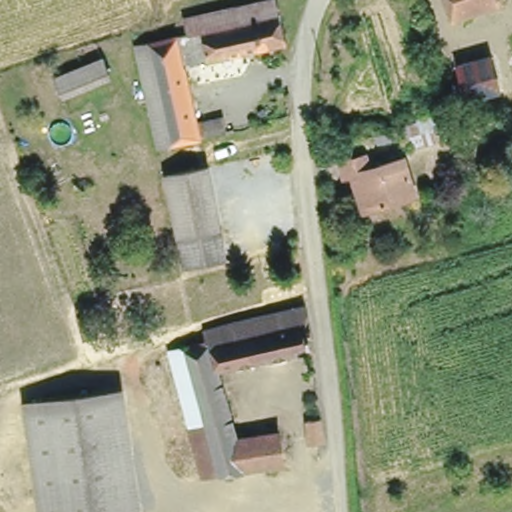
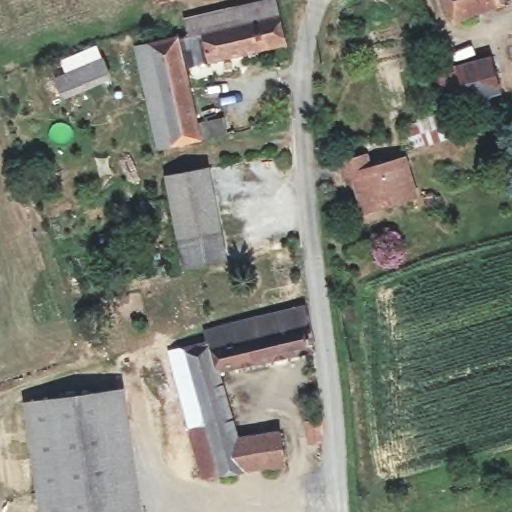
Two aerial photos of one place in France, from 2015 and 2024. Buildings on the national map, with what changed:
unchanged [(182,65),(192,117),(225,111),(229,127),(154,146),(134,42),(182,31),(180,17),(259,0),(274,0),(281,44),(182,65)]
unchanged [(500,2),(448,20),(441,0),(499,0),(500,2)]
unchanged [(468,95),(458,60),(490,52),(500,85),(468,95)]
unchanged [(102,53),(109,73),(65,90),(57,70),(102,53)]
unchanged [(361,205),(352,169),(342,171),(338,156),(365,149),(369,162),(400,151),(412,189),(361,205)]
unchanged [(205,163),(221,256),(180,263),(162,172),(205,163)]
unchanged [(222,327),(307,310),(308,347),(217,367),(224,406),(180,417),(172,380),(165,340),(182,336),(222,327)]
unchanged [(104,392),(115,463),(119,511),(110,512),(44,512),(25,402),(104,392)]
unchanged [(194,469),(180,417),(224,406),(230,435),(234,461),(194,469)]
unchanged [(325,432),(311,432),(310,410),(323,408),(325,432)]
unchanged [(280,432),(281,456),(234,461),(230,435),(280,432)]
unchanged [(142,510),(119,511),(115,463),(135,462),(142,510)]
unchanged [(110,512),(119,511),(142,510),(143,512),(110,512)]

